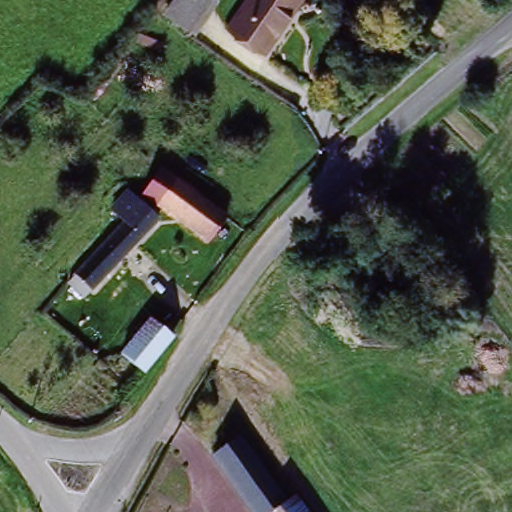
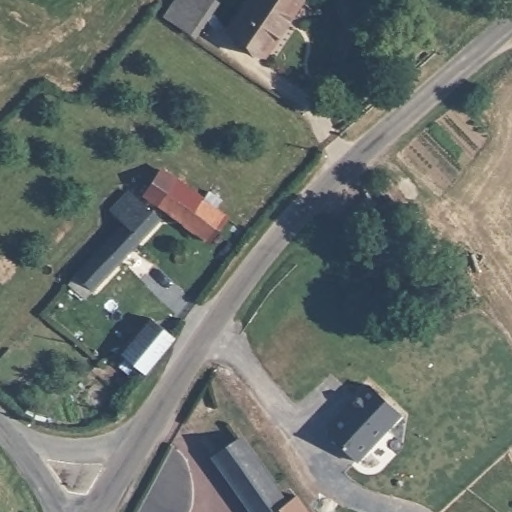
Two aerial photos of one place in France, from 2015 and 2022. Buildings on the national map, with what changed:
unchanged [(189,29),(167,17),(176,0),(205,0),(189,29)]
unchanged [(246,0),(293,0),(265,51),(230,29),(246,0)]
unchanged [(208,228),(148,182),(163,165),(221,211),(208,228)]
unchanged [(89,282),(74,266),(129,210),(116,200),(133,182),(146,194),(163,209),(89,282)]
unchanged [(142,370),(123,353),(148,322),(168,339),(142,370)]
new [(402,413),(357,461),(326,433),(324,425),(349,400),(352,403),(369,384),(402,413)]
unchanged [(307,512),(248,512),(246,509),(211,458),(241,439),(266,474),(279,467),(307,512)]

